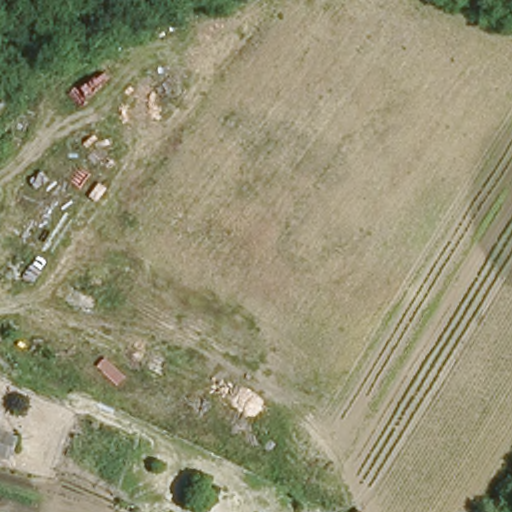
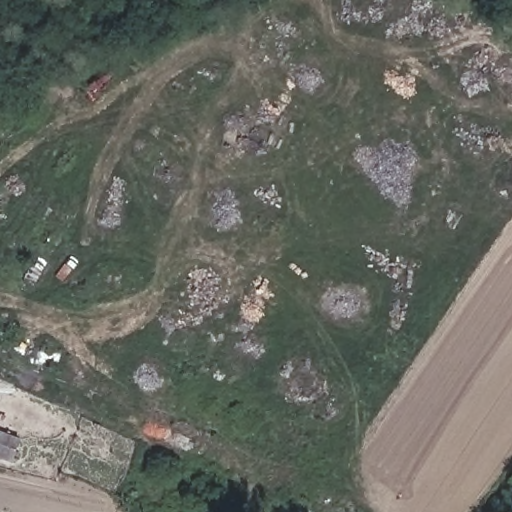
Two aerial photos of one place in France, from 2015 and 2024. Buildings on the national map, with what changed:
unchanged [(0,459),(0,442),(9,446),(10,449),(3,461),(0,459)]

